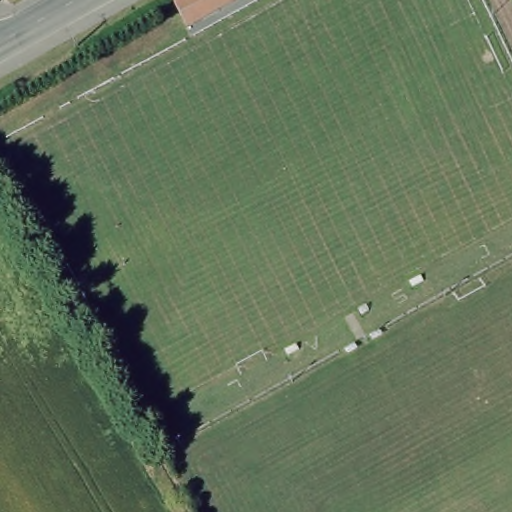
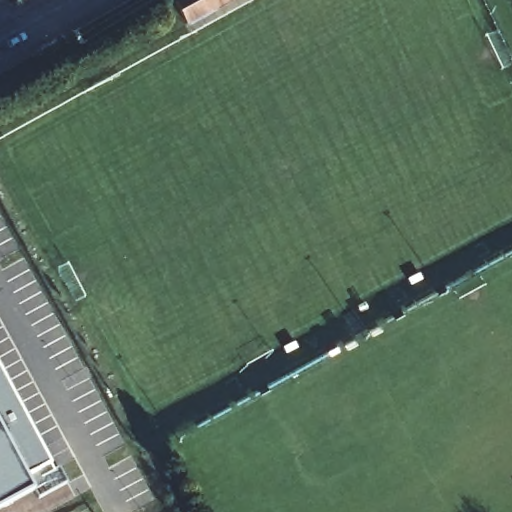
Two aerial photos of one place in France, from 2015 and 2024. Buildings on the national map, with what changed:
unchanged [(174,4),(181,0),(232,0),(186,26),(174,4)]
new [(80,512),(0,512),(0,346),(80,512)]

